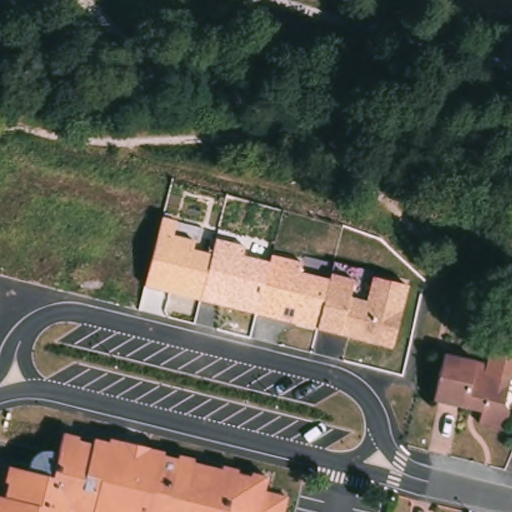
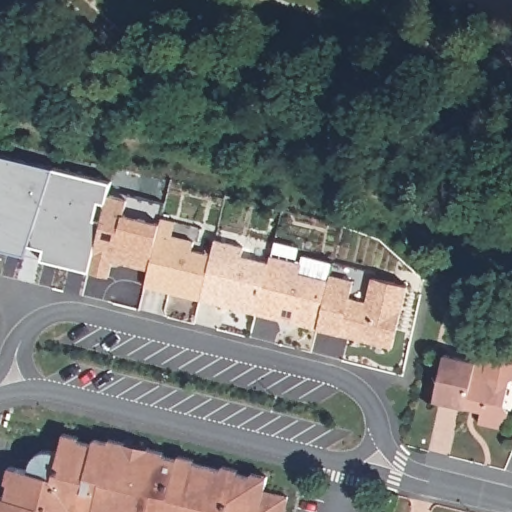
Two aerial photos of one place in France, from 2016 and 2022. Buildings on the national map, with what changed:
new [(110,181),(107,194),(126,198),(127,193),(164,203),(162,217),(149,271),(112,260),(108,276),(40,259),(44,249),(26,244),(24,254),(0,248),(0,154),(110,181)]
unchanged [(392,350),(145,286),(162,217),(176,220),(172,235),(194,242),(192,248),(211,253),(215,239),(241,246),(240,254),(270,261),(270,255),(301,263),(299,273),(328,280),(330,274),(353,280),(350,296),(366,300),(372,278),(406,286),(392,350)]
unchanged [(488,359),(495,355),(512,359),(512,384),(510,386),(504,411),(509,416),(505,433),(478,427),(480,418),(478,414),(475,411),(465,409),(463,413),(433,406),(443,360),(486,370),(488,359)]
unchanged [(6,500),(10,485),(5,484),(9,467),(25,471),(50,477),(56,452),(61,432),(77,436),(76,441),(92,444),(94,439),(107,442),(109,438),(165,452),(164,457),(179,460),(180,456),(195,460),(194,464),(222,471),(223,466),(238,470),(237,474),(251,477),(252,473),(266,476),(263,491),(289,496),(285,512),(0,512),(0,498),(6,500)]

